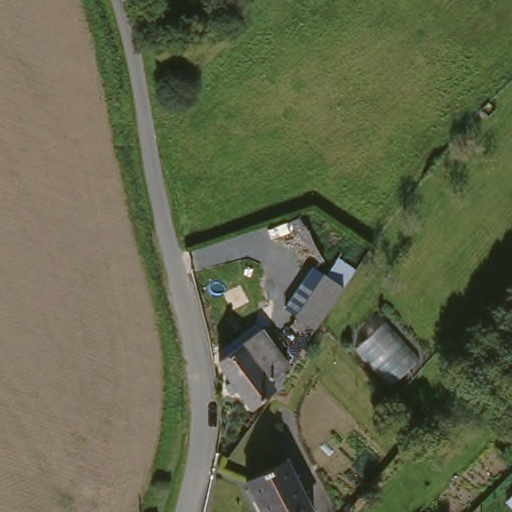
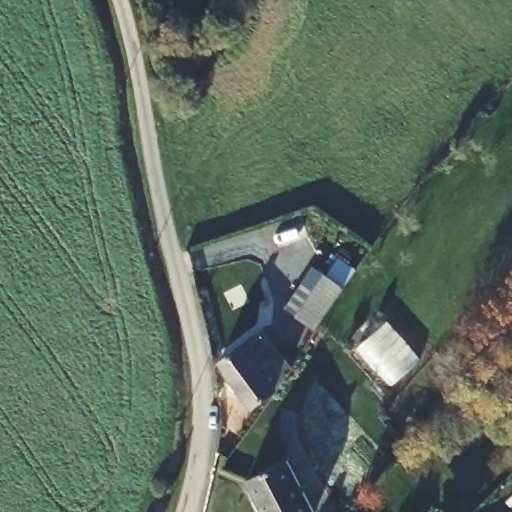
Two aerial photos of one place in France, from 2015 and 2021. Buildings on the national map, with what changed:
unchanged [(297,313),(334,254),(357,266),(317,322),(297,313)]
unchanged [(419,367),(395,394),(357,353),(386,328),(419,367)]
unchanged [(260,336),(263,342),(285,387),(239,407),(215,361),(240,347),(260,336)]
unchanged [(312,512),(257,512),(242,480),(287,460),(313,512),(312,512)]

